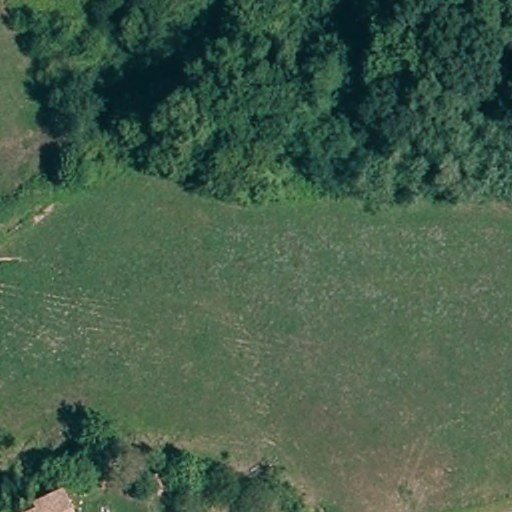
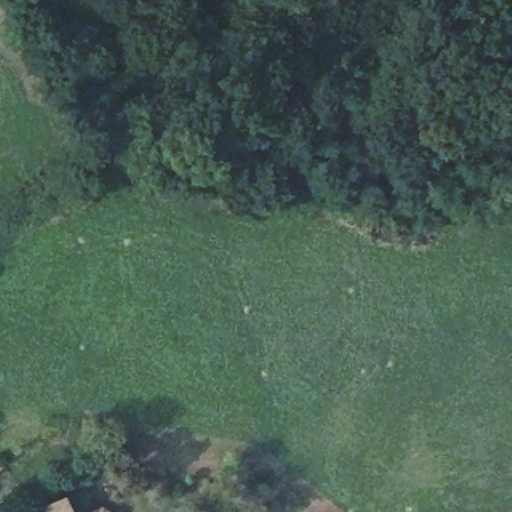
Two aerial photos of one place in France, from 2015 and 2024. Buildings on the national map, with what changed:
unchanged [(41,499),(70,490),(79,512),(42,512),(47,510),(41,499)]

